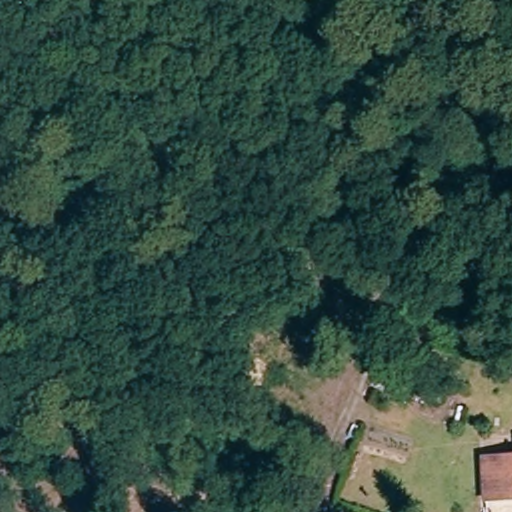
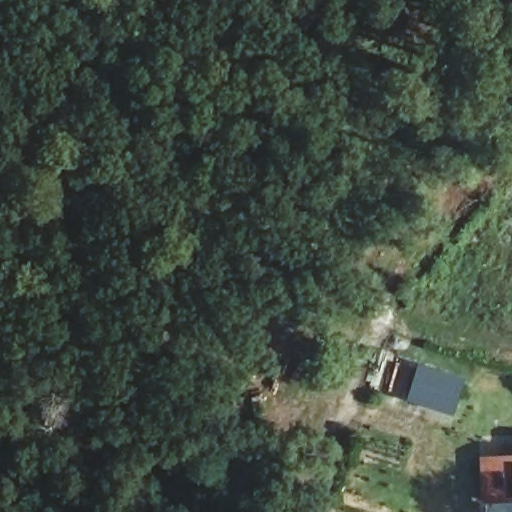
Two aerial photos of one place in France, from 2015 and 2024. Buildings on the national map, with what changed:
new [(453,418),(403,400),(385,393),(396,355),(416,361),(467,377),(453,418)]
unchanged [(490,511),(487,473),(512,472),(512,510),(490,511)]

